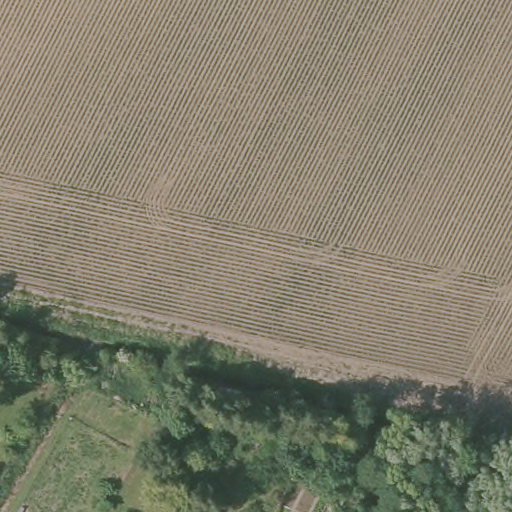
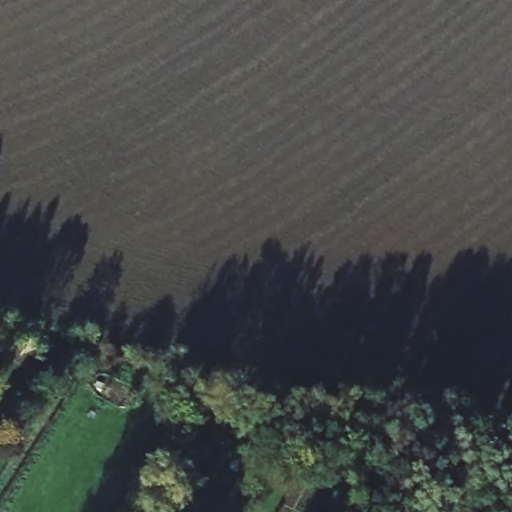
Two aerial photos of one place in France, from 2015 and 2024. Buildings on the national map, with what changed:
[]

